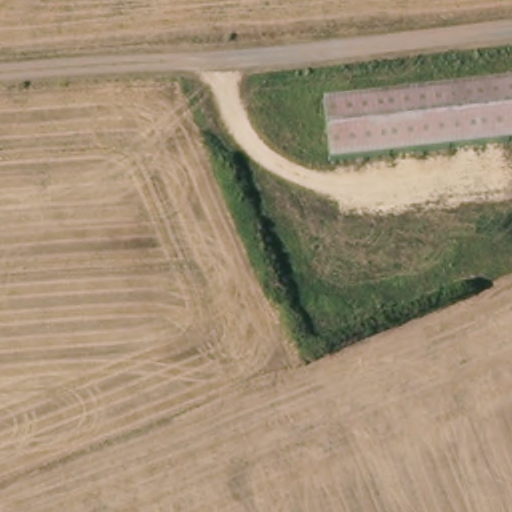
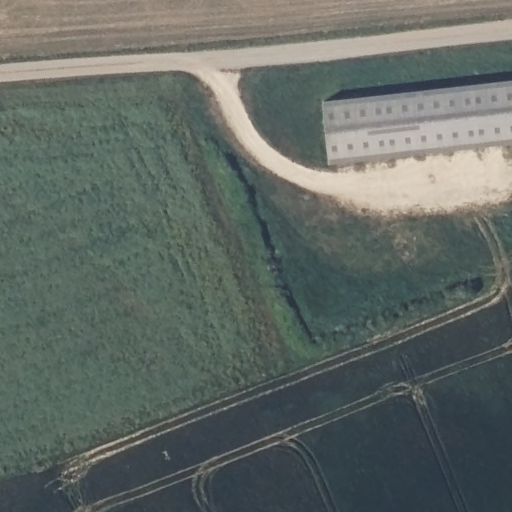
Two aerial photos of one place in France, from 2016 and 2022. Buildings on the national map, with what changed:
unchanged [(512,77),(512,136),(331,155),(324,97),(512,77)]

